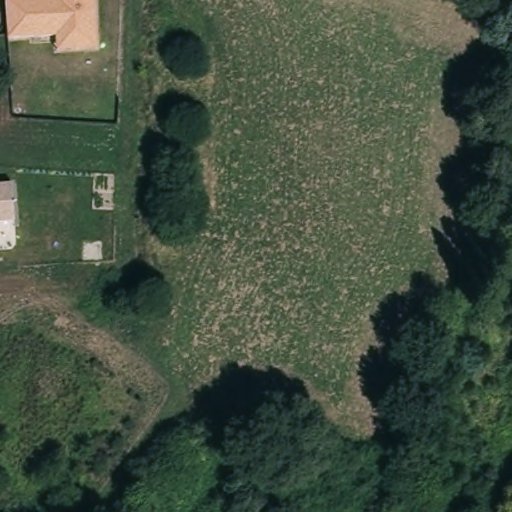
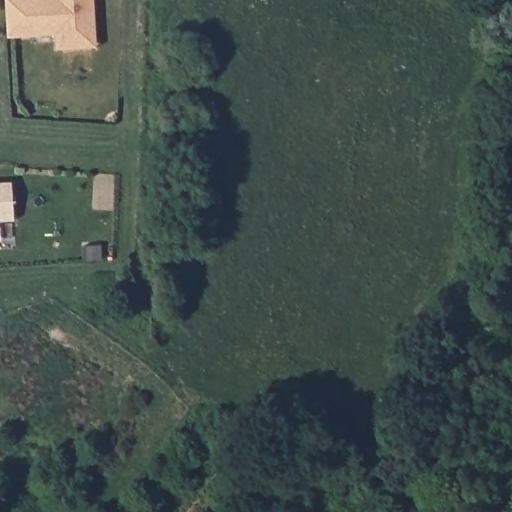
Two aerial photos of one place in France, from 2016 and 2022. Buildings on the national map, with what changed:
unchanged [(58,46),(57,33),(10,35),(6,0),(95,0),(97,42),(58,46)]
unchanged [(0,220),(0,182),(12,181),(17,220),(0,220)]
unchanged [(441,409),(423,402),(433,376),(448,382),(441,409)]

